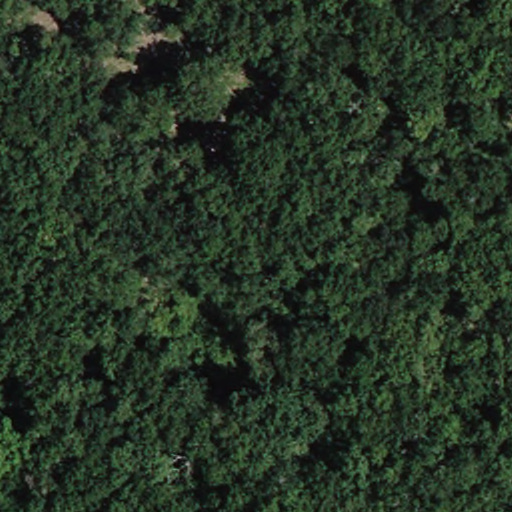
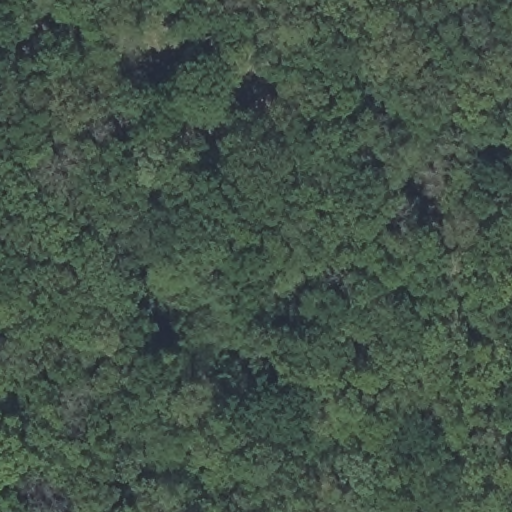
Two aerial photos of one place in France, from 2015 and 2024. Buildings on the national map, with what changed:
unchanged [(385,96),(400,116),(384,129),(369,109),(385,96)]

